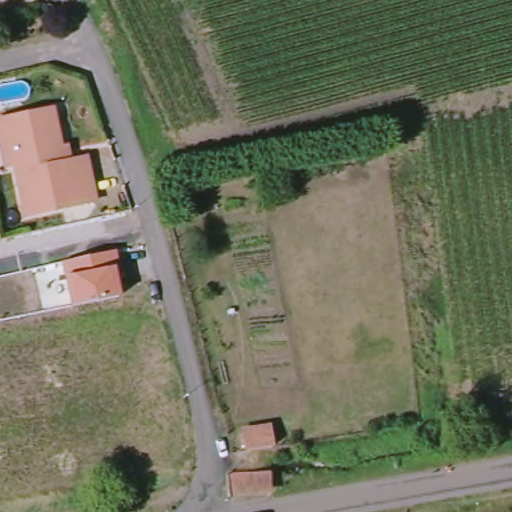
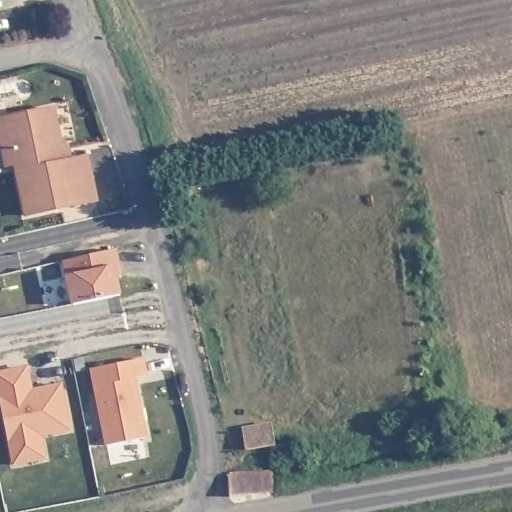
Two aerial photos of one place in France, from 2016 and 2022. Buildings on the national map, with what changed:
unchanged [(61,145),(65,159),(80,155),(90,200),(20,215),(10,164),(0,166),(0,119),(46,107),(49,119),(55,146),(61,145)]
new [(114,251),(121,294),(73,305),(60,262),(114,251)]
new [(106,446),(90,369),(145,358),(149,376),(136,379),(147,437),(106,446)]
new [(15,465),(0,395),(0,372),(28,366),(33,388),(63,382),(72,430),(42,436),(46,459),(15,465)]
unchanged [(240,450),(237,425),(269,422),(270,446),(240,450)]
unchanged [(266,472),(267,497),(224,499),(222,475),(266,472)]

